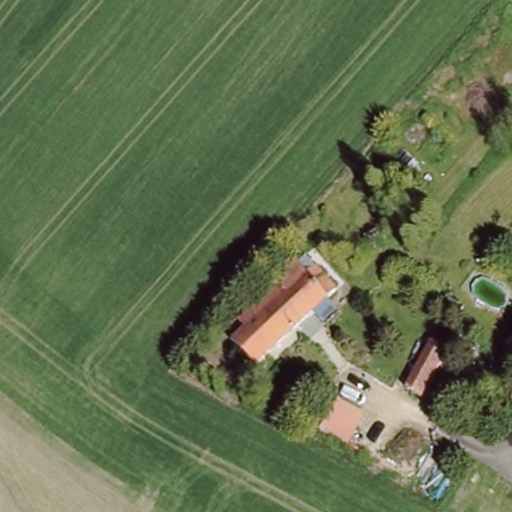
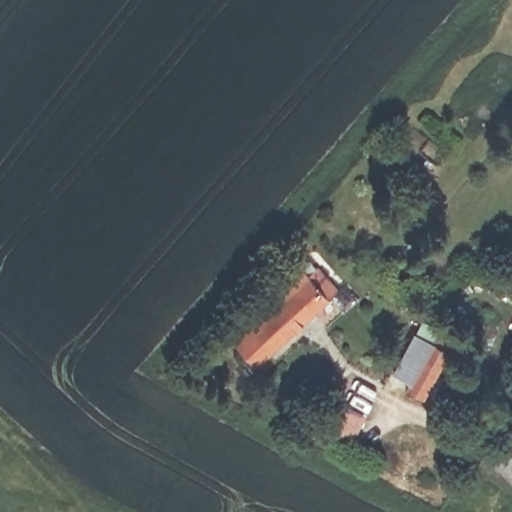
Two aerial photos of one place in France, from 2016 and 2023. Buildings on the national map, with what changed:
unchanged [(232,342),(255,321),(246,311),(295,267),(307,279),(317,269),(337,292),(326,300),(327,302),(255,368),(232,342)]
unchanged [(422,399),(405,388),(432,340),(450,351),(435,377),(447,384),(434,405),(422,399)]
unchanged [(361,416),(347,444),(340,440),(322,431),(337,402),(361,416)]

